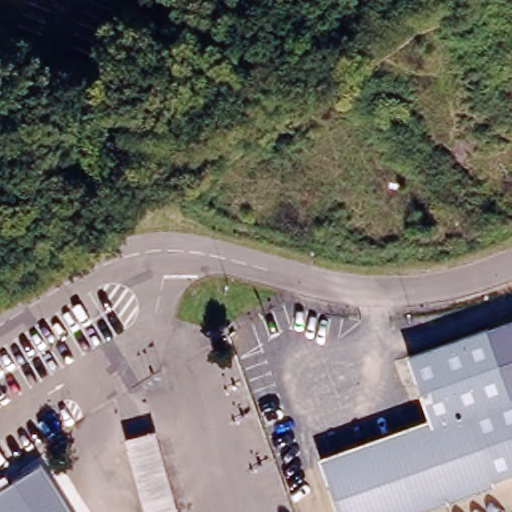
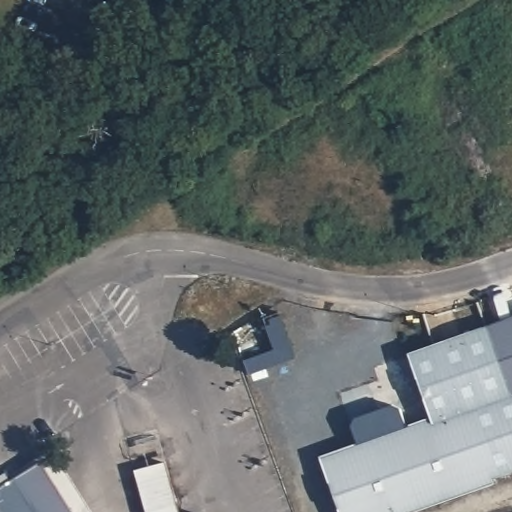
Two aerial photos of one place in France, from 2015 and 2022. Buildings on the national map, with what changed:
unchanged [(512,318),(512,394),(510,395),(485,327),(512,318)]
unchanged [(510,395),(512,394),(512,471),(491,478),(493,483),(411,512),(339,512),(319,455),(429,416),(407,353),(485,327),(510,395)]
unchanged [(144,512),(125,425),(155,417),(176,512),(144,512)]
unchanged [(0,512),(0,488),(42,462),(73,512),(0,512)]

